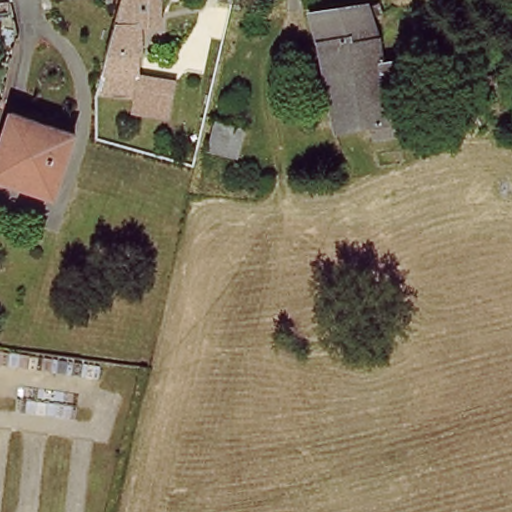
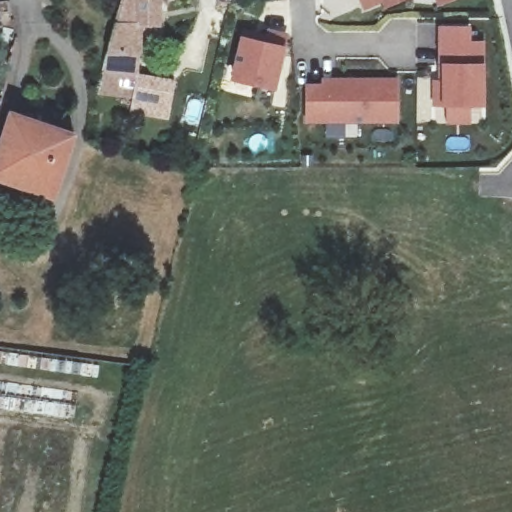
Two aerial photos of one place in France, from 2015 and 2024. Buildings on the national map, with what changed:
unchanged [(159,26),(144,23),(137,72),(180,76),(173,124),(130,119),(135,99),(95,95),(117,0),(165,0),(159,26)]
new [(385,8),(383,3),(364,10),(360,0),(407,0),(385,8)]
new [(437,6),(435,0),(452,0),(437,6)]
demolished [(375,1),(380,50),(412,47),(414,65),(382,68),(385,126),(394,125),(396,142),(369,143),(368,130),(328,131),(328,58),(322,6),(375,1)]
new [(286,48),(274,90),(227,79),(237,36),(241,37),(242,30),(265,36),(267,29),(289,35),(286,48)]
new [(435,82),(443,82),(444,64),(440,64),(441,29),(467,30),(467,44),(482,43),(482,66),(482,105),(468,104),(468,121),(449,121),(449,103),(444,103),(435,103),(435,82)]
new [(395,124),(305,125),(304,84),(321,83),(321,78),(397,79),(395,124)]
demolished [(251,119),(242,153),(214,145),(223,109),(251,119)]
unchanged [(0,177),(0,159),(21,115),(77,136),(50,197),(0,177)]

